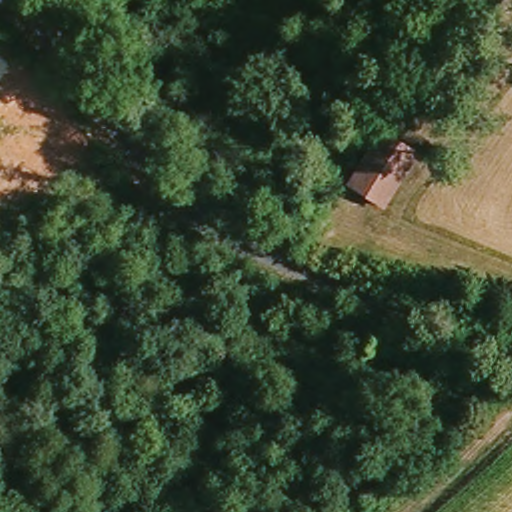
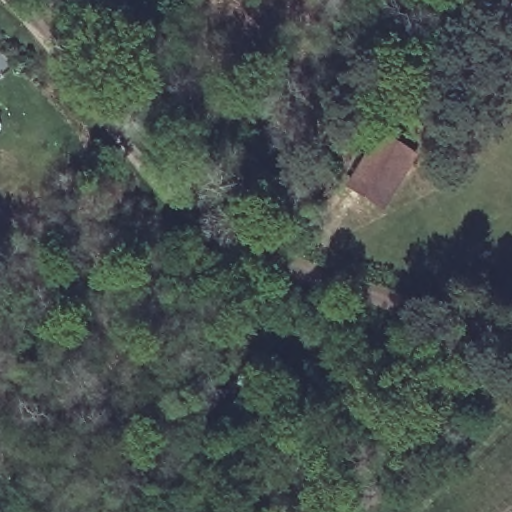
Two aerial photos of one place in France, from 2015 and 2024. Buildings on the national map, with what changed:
unchanged [(419,154),(382,210),(346,187),(379,135),(419,154)]

